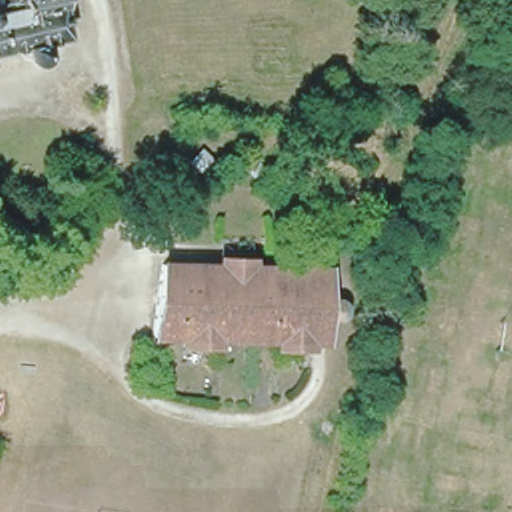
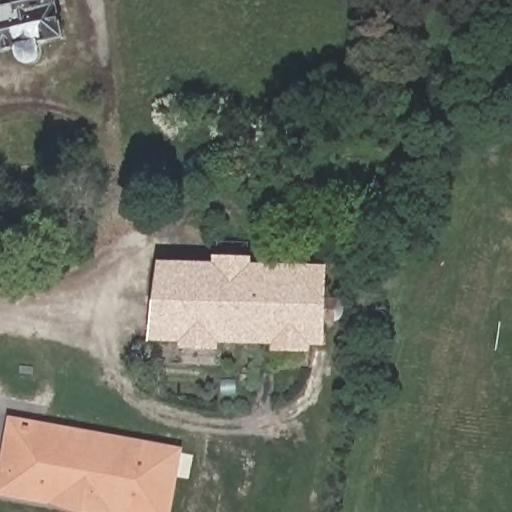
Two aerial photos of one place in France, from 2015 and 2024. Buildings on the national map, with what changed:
unchanged [(60,36),(37,42),(39,48),(39,52),(37,56),(35,58),(32,60),(27,61),(22,61),(18,59),(15,56),(14,50),(0,53),(0,0),(51,0),(60,36)]
unchanged [(326,345),(156,338),(158,262),(329,267),(326,345)]
new [(170,512),(83,512),(0,497),(0,433),(2,417),(180,447),(170,512)]

